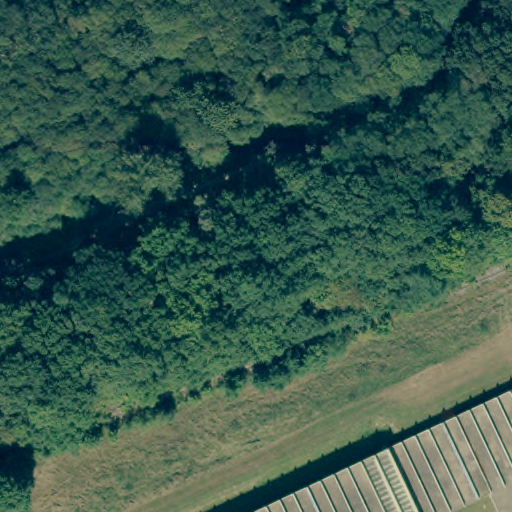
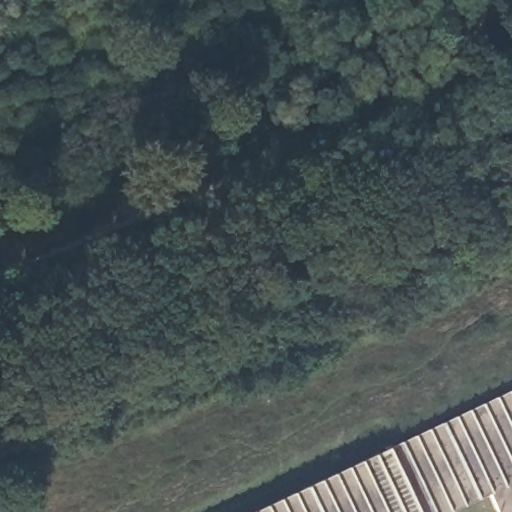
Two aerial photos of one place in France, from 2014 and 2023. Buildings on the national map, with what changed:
unchanged [(493,512),(485,492),(443,512),(246,512),(512,388),(512,512),(493,512)]

